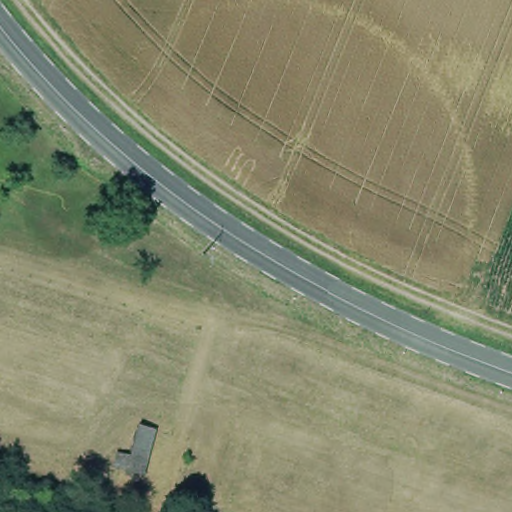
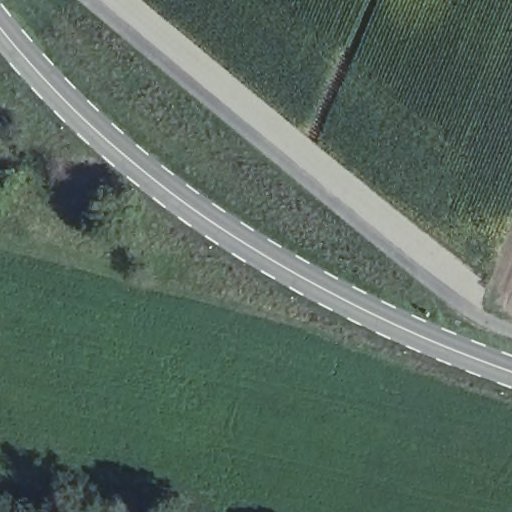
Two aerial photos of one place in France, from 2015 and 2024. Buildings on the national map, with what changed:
new [(143,477),(111,470),(115,454),(128,457),(136,426),(154,431),(143,477)]

